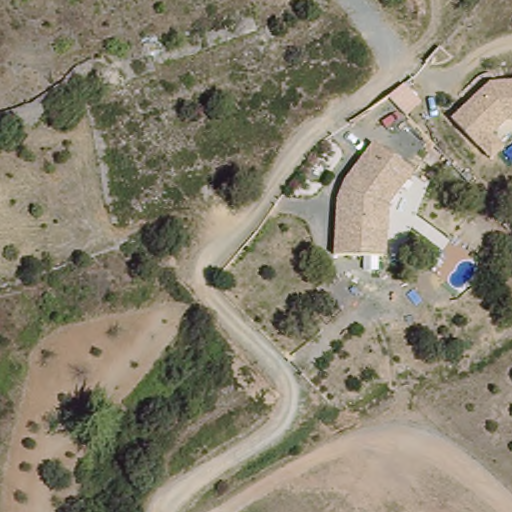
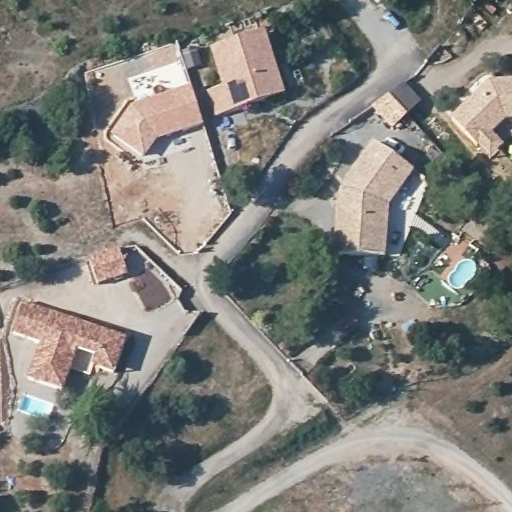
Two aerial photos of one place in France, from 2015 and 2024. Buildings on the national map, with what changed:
new [(286,96),(203,122),(205,127),(158,141),(145,158),(112,134),(130,108),(192,88),(194,95),(223,88),(213,49),(267,33),(286,96)]
unchanged [(495,86),(512,85),(512,125),(507,126),(497,132),(506,147),(492,156),(460,118),(495,86)]
new [(418,87),(434,106),(418,119),(402,100),(418,87)]
unchanged [(410,176),(383,205),(377,256),(327,250),(333,194),(341,177),(374,141),(410,176)]
new [(120,249),(128,276),(97,285),(90,259),(120,249)]
new [(127,339),(116,374),(95,368),(97,358),(77,352),(65,391),(29,380),(41,343),(12,334),(23,303),(127,339)]

